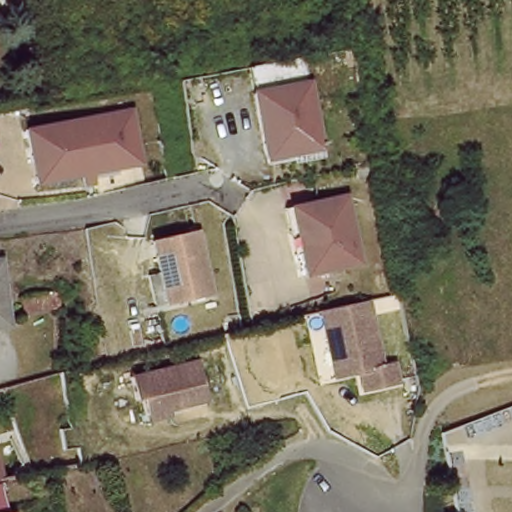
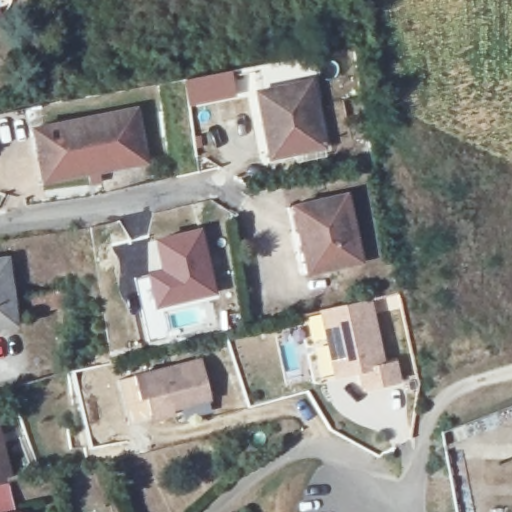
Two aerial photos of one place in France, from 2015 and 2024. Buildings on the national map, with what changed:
unchanged [(307,84),(253,96),(248,70),(302,59),(307,84)]
new [(188,106),(183,81),(232,71),(237,98),(188,106)]
unchanged [(307,84),(322,150),(268,161),(253,96),(307,84)]
unchanged [(123,166),(42,181),(32,128),(136,109),(142,145),(145,161),(123,166)]
unchanged [(364,263),(310,274),(305,252),(299,253),(294,225),(290,207),(310,203),(350,195),(364,263)]
unchanged [(222,299),(166,313),(154,267),(166,264),(159,233),(202,222),(222,299)]
unchanged [(18,326),(0,328),(0,260),(8,260),(18,326)]
unchanged [(395,364),(400,384),(364,392),(359,373),(341,377),(334,379),(326,343),(320,313),(329,311),(369,301),(384,367),(395,364)]
unchanged [(200,362),(209,402),(170,411),(172,421),(149,425),(144,402),(138,404),(131,378),(200,362)]
unchanged [(16,416),(0,419),(0,393),(10,391),(16,416)]
unchanged [(2,488),(0,488),(0,437),(14,485),(2,488)]
unchanged [(0,488),(2,488),(14,485),(20,512),(0,512),(0,488)]

